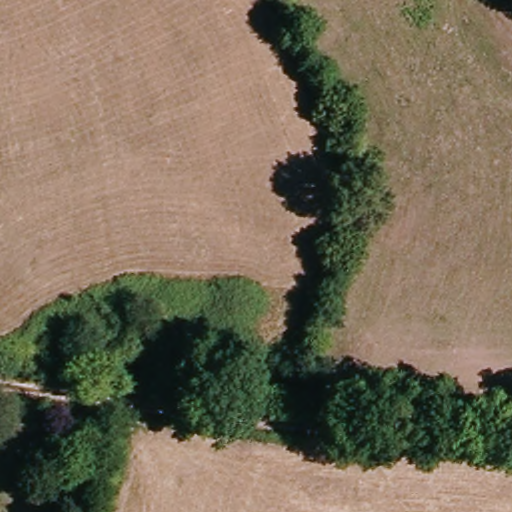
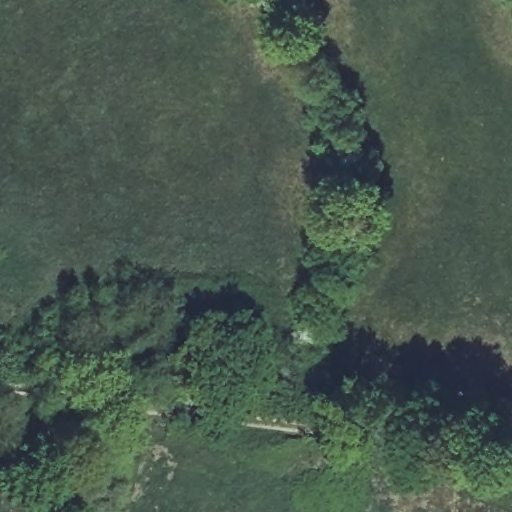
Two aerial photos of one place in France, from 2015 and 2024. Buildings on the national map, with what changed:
[]

